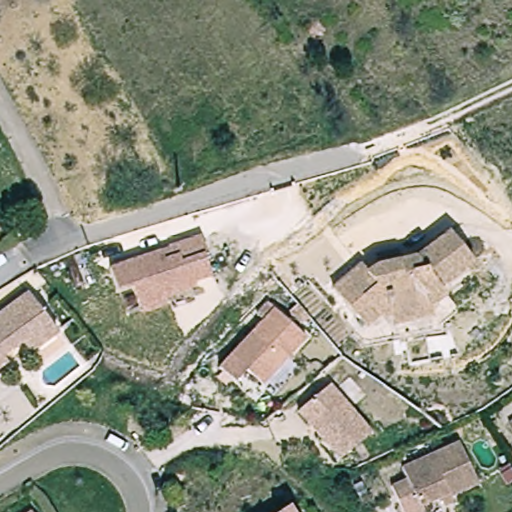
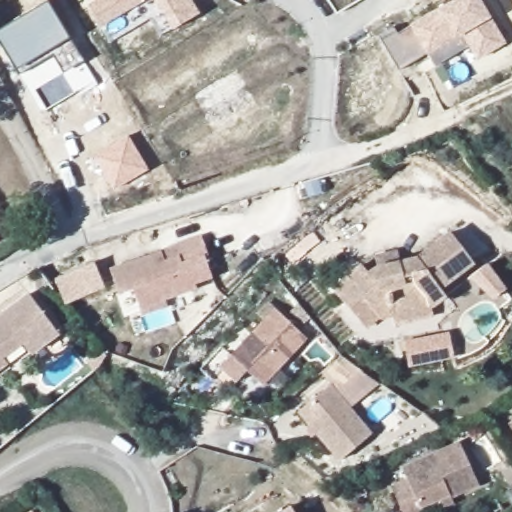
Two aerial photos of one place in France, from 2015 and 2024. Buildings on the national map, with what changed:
new [(96,0),(144,0),(101,25),(88,5),(96,0)]
new [(192,0),(200,14),(172,30),(155,0),(192,0)]
new [(451,0),(481,0),(492,17),(506,42),(476,60),(468,46),(433,65),(427,55),(398,70),(378,35),(395,26),(397,31),(410,25),(436,9),(451,0)]
new [(0,42),(0,29),(48,1),(70,39),(83,61),(65,73),(53,55),(20,74),(16,70),(0,42)]
new [(113,190),(93,155),(128,135),(148,170),(113,190)]
unchanged [(137,305),(135,300),(130,280),(115,285),(107,260),(159,245),(166,242),(199,231),(205,250),(201,251),(208,272),(190,277),(192,282),(160,292),(162,298),(137,305)]
unchanged [(361,278),(375,269),(413,261),(447,236),(470,265),(430,300),(432,314),(375,322),(368,315),(352,326),(327,294),(356,272),(361,278)]
unchanged [(0,366),(0,311),(25,289),(56,325),(30,347),(21,336),(2,354),(7,360),(0,366)]
unchanged [(280,306),(310,338),(263,382),(248,366),(236,378),(221,362),(280,306)]
new [(449,331),(455,359),(408,367),(403,341),(449,331)]
unchanged [(370,436),(337,461),(299,410),(332,385),(370,436)]
unchanged [(512,427),(512,439),(506,430),(512,427)]
unchanged [(404,474),(461,448),(480,490),(451,503),(450,500),(423,512),(402,512),(393,493),(409,486),(404,474)]
unchanged [(297,501),(304,512),(281,512),(297,501)]
unchanged [(31,512),(26,512),(30,510),(31,512)]

